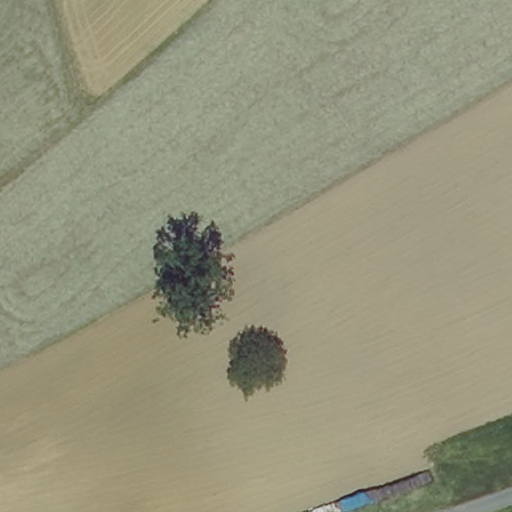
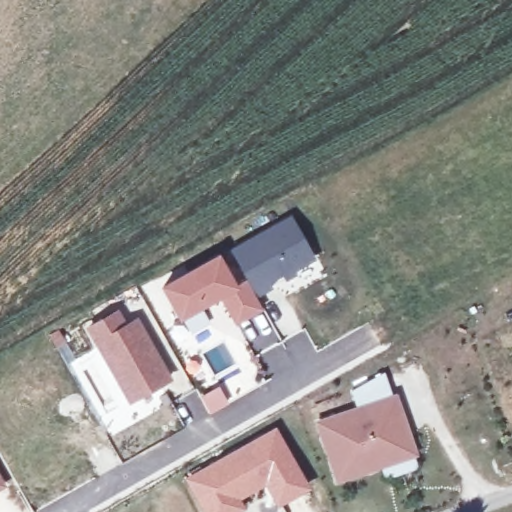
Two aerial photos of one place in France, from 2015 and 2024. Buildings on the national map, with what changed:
new [(290,214),(315,259),(296,271),(297,274),(285,281),(282,275),(270,282),(272,288),(257,297),(230,249),(290,214)]
new [(118,307),(127,321),(138,314),(172,379),(127,403),(84,328),(118,307)]
new [(337,483),(315,421),(396,395),(416,455),(420,468),(383,480),(380,469),(337,483)]
new [(311,487),(276,508),(263,485),(240,499),(245,507),(238,512),(203,512),(183,478),(275,426),(311,487)]
new [(0,489),(0,475),(6,485),(0,489)]

